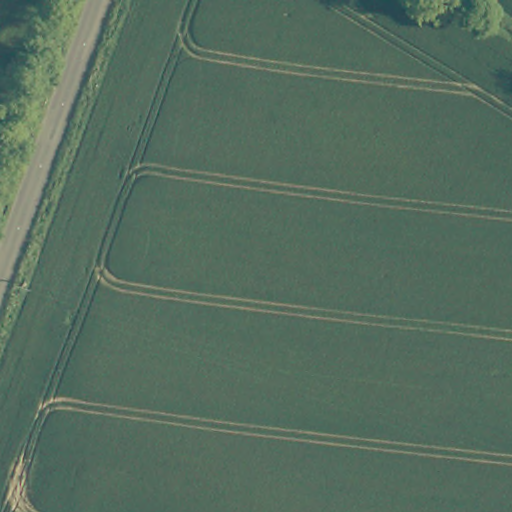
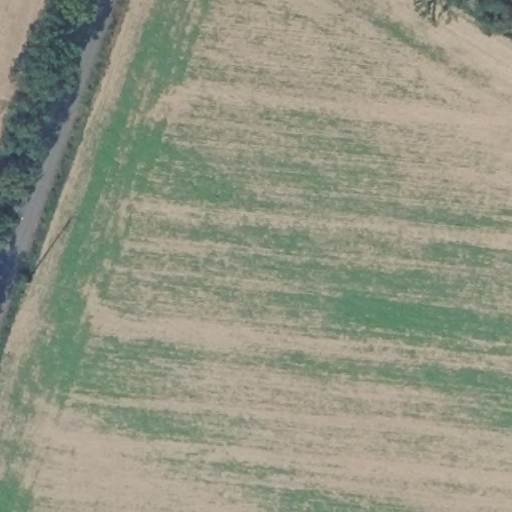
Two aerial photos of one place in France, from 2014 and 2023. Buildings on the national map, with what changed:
[]

